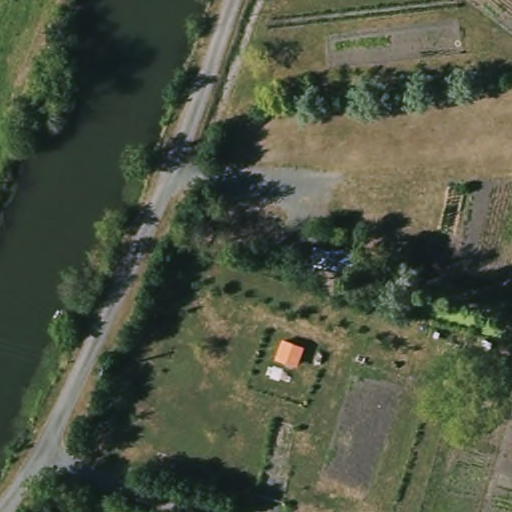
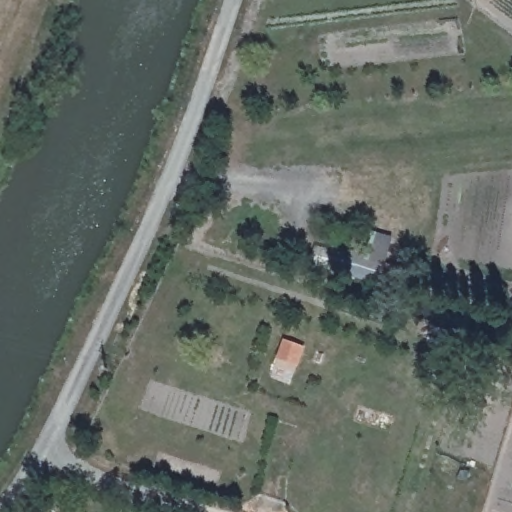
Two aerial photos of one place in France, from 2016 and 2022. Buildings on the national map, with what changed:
unchanged [(56,512),(43,512),(45,507),(56,512)]

